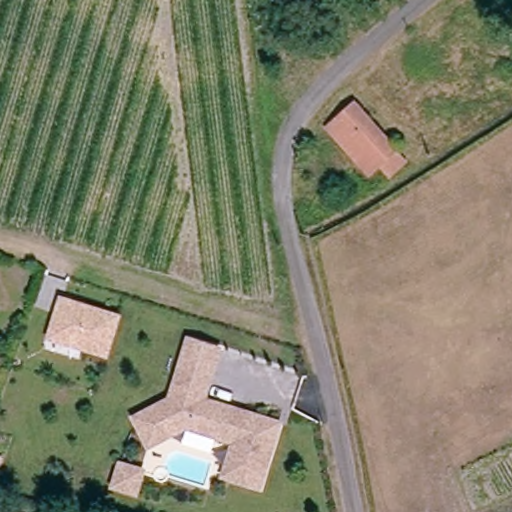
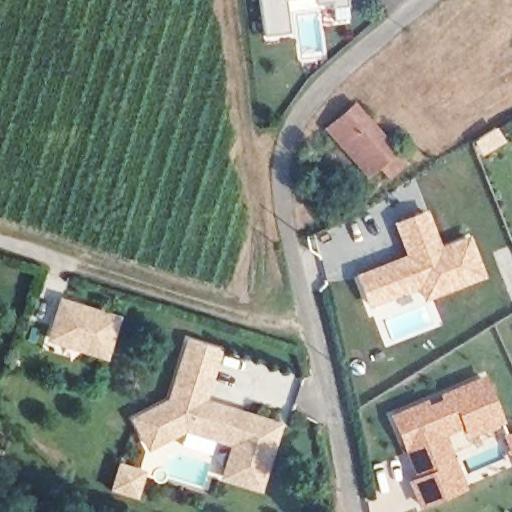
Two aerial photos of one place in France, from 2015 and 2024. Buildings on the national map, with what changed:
new [(319,7),(287,11),(290,31),(265,33),(261,0),(333,0),(319,2),(319,7)]
new [(334,6),(333,0),(348,0),(348,5),(334,6)]
unchanged [(353,106),(399,158),(385,170),(376,162),(361,175),(324,132),(353,106)]
new [(439,248),(468,237),(482,274),(447,288),(441,273),(398,290),(400,293),(369,303),(358,275),(415,256),(410,244),(405,246),(396,223),(425,211),(439,248)]
unchanged [(121,315),(108,358),(46,340),(59,295),(121,315)]
unchanged [(151,451),(145,439),(137,424),(170,406),(172,405),(181,379),(191,345),(193,346),(220,355),(204,406),(226,413),(246,419),(248,419),(280,430),(261,492),(229,482),(226,481),(236,448),(187,432),(167,442),(154,449),(151,451)]
new [(408,479),(415,475),(389,413),(426,398),(428,402),(440,398),(438,393),(485,374),(506,421),(467,438),(463,427),(446,435),(467,488),(419,509),(408,479)]
unchanged [(138,472),(135,483),(132,493),(131,493),(111,487),(117,466),(138,472)]

